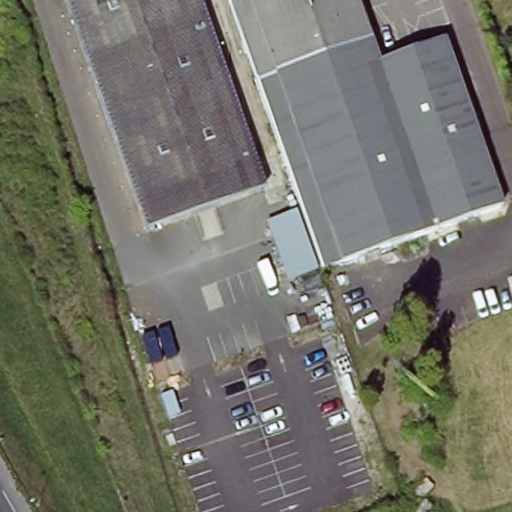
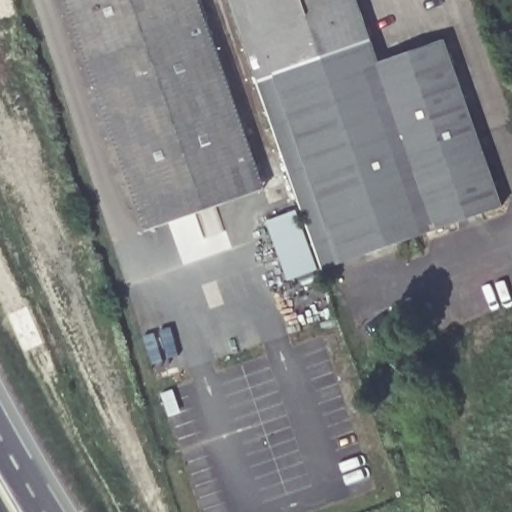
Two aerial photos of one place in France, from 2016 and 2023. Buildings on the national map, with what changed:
unchanged [(257,166),(137,207),(65,0),(199,0),(257,166)]
unchanged [(299,212),(225,0),(353,0),(367,41),(380,47),(385,61),(450,38),(509,205),(432,232),(429,239),(415,243),(409,240),(320,271),(299,212)]
unchanged [(137,207),(257,166),(265,192),(146,234),(137,207)]
unchanged [(299,212),(320,271),(287,277),(269,225),(299,212)]

